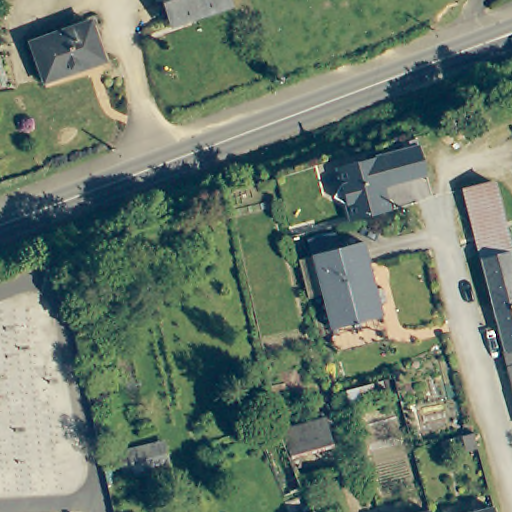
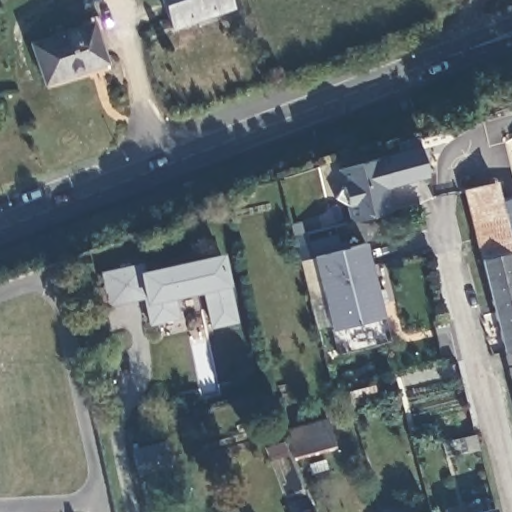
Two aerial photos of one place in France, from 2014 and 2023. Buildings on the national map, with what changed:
unchanged [(214,13),(212,7),(170,21),(163,0),(229,0),(231,6),(214,13)]
unchanged [(105,56),(64,72),(64,75),(45,82),(31,42),(92,20),(105,56)]
unchanged [(425,142),(425,143),(433,170),(385,184),(387,192),(391,191),(395,207),(358,217),(353,200),(340,194),(348,180),(343,164),(425,142)]
unchanged [(481,259),(483,258),(483,257),(466,189),(495,181),(512,250),(512,376),(510,366),(481,259)]
unchanged [(336,235),(338,242),(346,240),(347,247),(365,242),(377,289),(385,287),(388,302),(381,304),(385,316),(333,330),(324,296),(311,300),(301,260),(313,257),(310,241),(336,235)]
new [(201,293),(175,298),(180,318),(150,325),(144,299),(108,306),(100,270),(140,260),(144,268),(222,251),(230,286),(240,324),(208,331),(201,293)]
unchanged [(371,398),(350,404),(347,390),(367,385),(371,398)]
unchanged [(283,430),(326,418),(333,446),(294,458),(285,438),(283,430)]
unchanged [(480,447),(467,450),(463,435),(477,432),(480,447)]
unchanged [(171,465),(127,475),(121,452),(166,441),(171,465)]
unchanged [(497,512),(474,512),(495,506),(497,512)]
unchanged [(319,512),(303,512),(317,507),(319,512)]
unchanged [(431,512),(425,512),(430,510),(431,512)]

